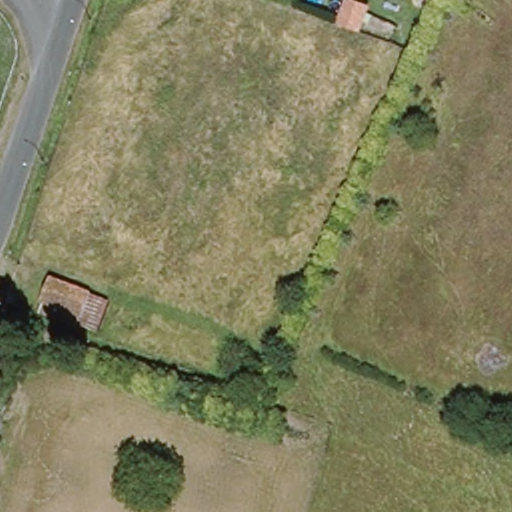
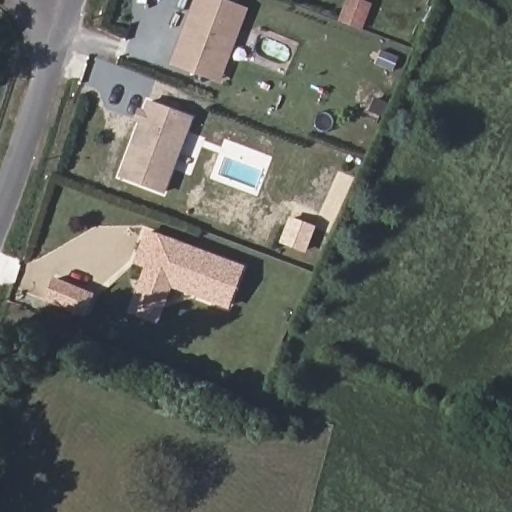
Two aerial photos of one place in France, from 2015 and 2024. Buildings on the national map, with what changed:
new [(197,0),(211,0),(244,12),(238,26),(232,24),(221,54),(215,52),(207,75),(172,62),(197,0)]
new [(137,123),(133,121),(138,108),(144,109),(146,102),(191,118),(164,195),(117,177),(137,123)]
new [(242,267),(225,307),(168,288),(156,324),(127,313),(142,268),(133,264),(144,231),(242,267)]
unchanged [(43,303),(53,278),(108,301),(96,327),(43,303)]

